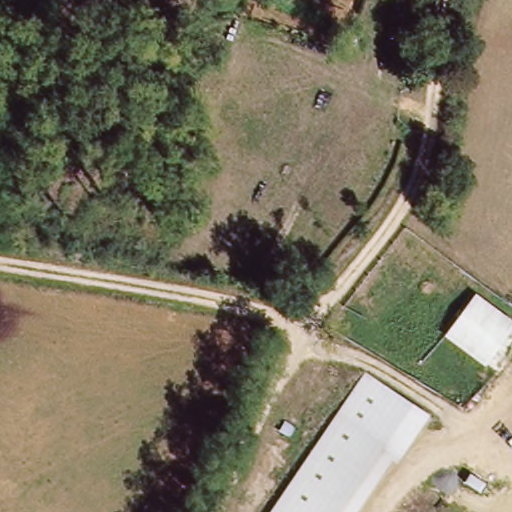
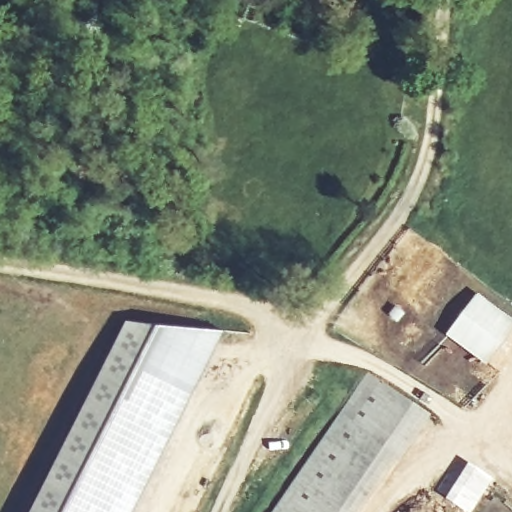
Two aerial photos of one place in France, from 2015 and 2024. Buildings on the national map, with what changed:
unchanged [(484,359),(445,332),(472,293),(511,319),(484,359)]
new [(185,390),(168,381),(105,350),(124,319),(222,328),(185,390)]
new [(105,350),(168,381),(101,512),(23,512),(105,350)]
unchanged [(370,373),(433,414),(403,460),(394,456),(356,512),(344,512),(386,445),(339,417),(370,373)]
new [(168,381),(185,390),(123,512),(101,512),(168,381)]
new [(339,417),(279,512),(273,512),(339,417)]
unchanged [(339,417),(386,445),(344,512),(279,512),(339,417)]

